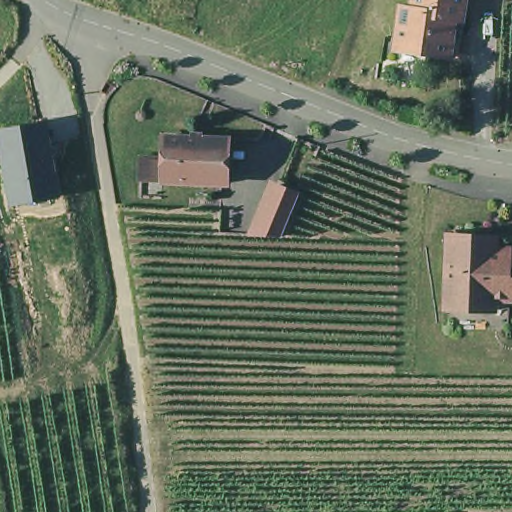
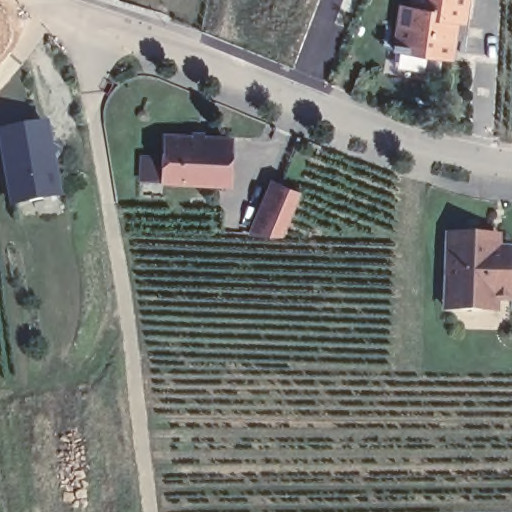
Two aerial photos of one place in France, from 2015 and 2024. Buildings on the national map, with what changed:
unchanged [(395,4),(406,6),(407,0),(461,0),(457,25),(451,24),(445,58),(419,54),(387,49),(388,41),(395,4)]
unchanged [(57,198),(10,207),(0,151),(0,128),(43,120),(57,198)]
unchanged [(151,155),(174,156),(175,135),(234,137),(233,182),(173,180),(151,179),(151,155)]
unchanged [(299,193),(281,235),(278,235),(253,234),(273,185),(276,184),(299,193)]
unchanged [(483,308),(456,307),(446,307),(447,277),(448,236),(469,236),(469,234),(488,235),(498,236),(498,247),(512,248),(512,298),(496,298),(496,308),(483,308)]

